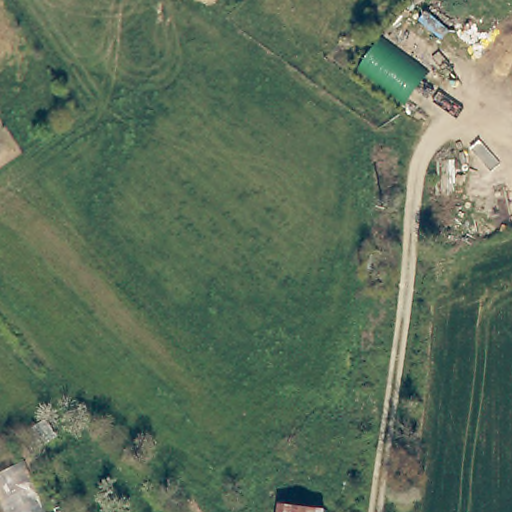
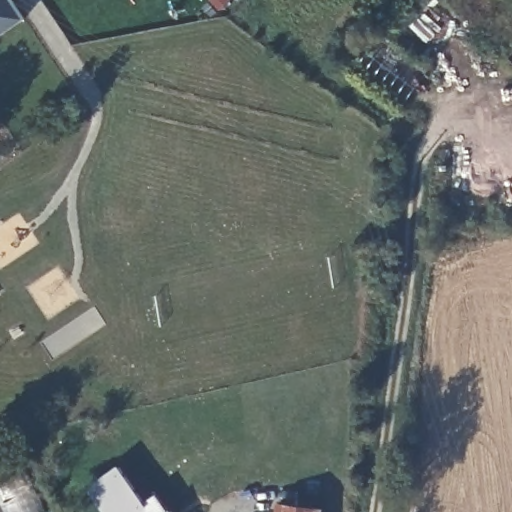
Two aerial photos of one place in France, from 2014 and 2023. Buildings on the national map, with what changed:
new [(158,495),(170,512),(104,512),(88,488),(120,467),(148,503),(158,495)]
unchanged [(313,512),(270,512),(271,507),(314,510),(313,512)]
new [(173,512),(170,512),(172,510),(173,512)]

